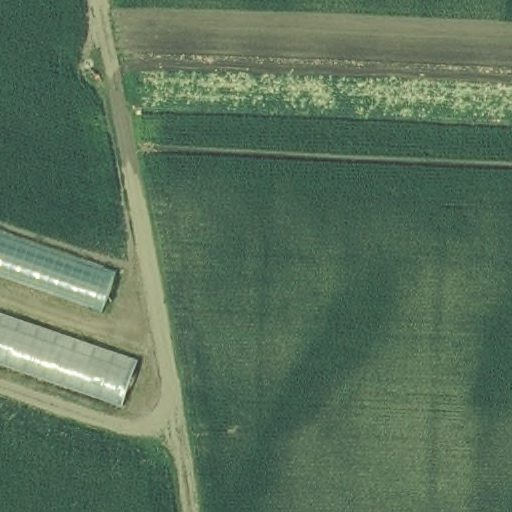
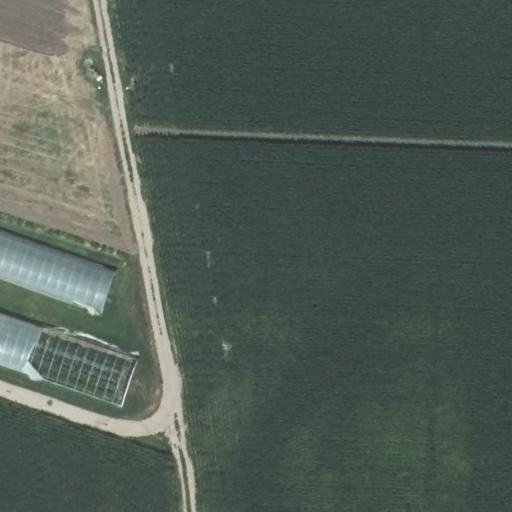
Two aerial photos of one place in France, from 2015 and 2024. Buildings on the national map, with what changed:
unchanged [(104,313),(0,277),(0,231),(117,272),(104,313)]
unchanged [(146,357),(130,404),(0,360),(0,307),(146,357)]

